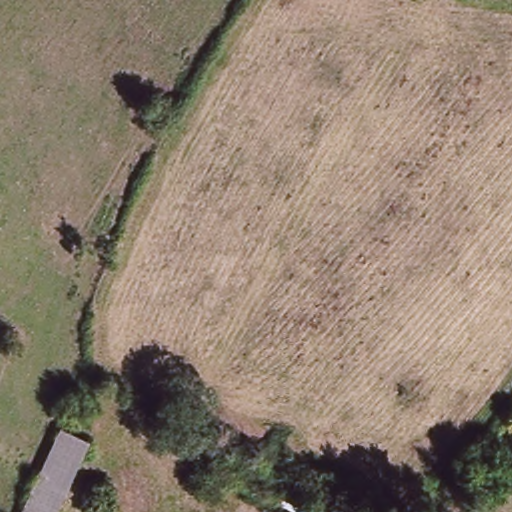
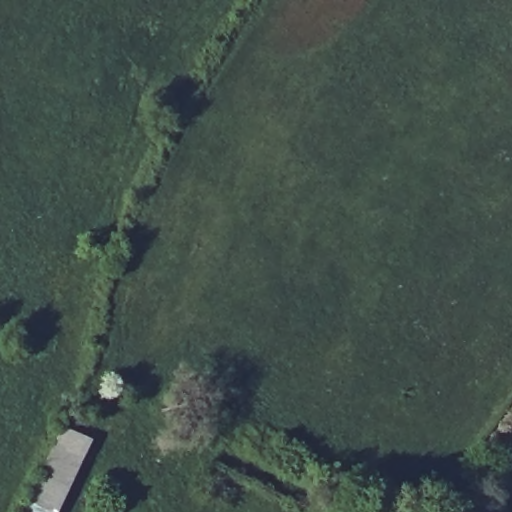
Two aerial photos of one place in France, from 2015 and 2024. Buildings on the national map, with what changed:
unchanged [(39,479),(60,427),(94,443),(60,512),(24,512),(39,479)]

